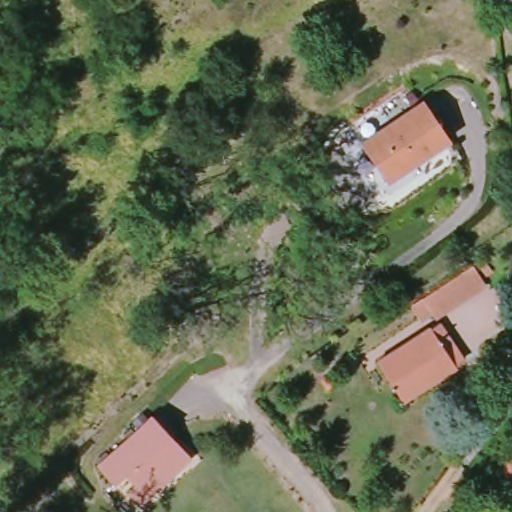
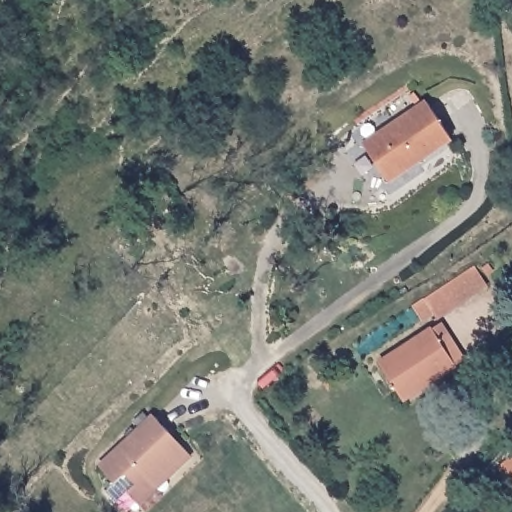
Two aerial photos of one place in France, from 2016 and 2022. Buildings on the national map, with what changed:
unchanged [(428,102),(455,138),(395,184),(367,147),(428,102)]
unchanged [(415,308),(477,267),(492,288),(427,320),(415,308)]
unchanged [(379,366),(442,324),(451,337),(442,344),(457,367),(403,402),(379,366)]
unchanged [(120,485),(103,467),(157,416),(195,456),(173,477),(141,507),(120,485)]
unchanged [(512,463),(512,479),(505,468),(512,463)]

